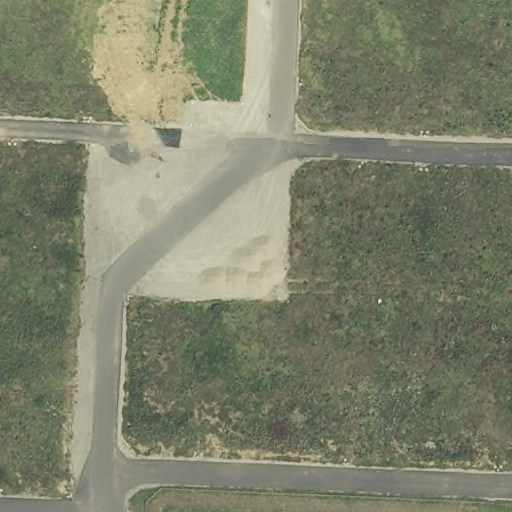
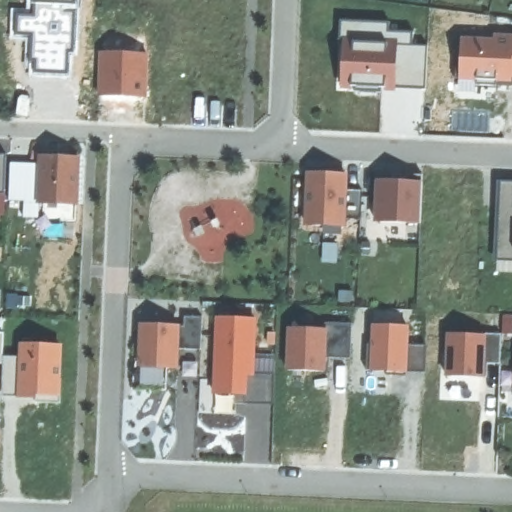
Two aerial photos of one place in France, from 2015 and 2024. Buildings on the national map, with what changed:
new [(77,8),(74,13),(73,51),(69,50),(68,72),(37,72),(37,61),(30,61),(31,35),(15,35),(16,13),(33,13),(34,0),(77,0),(77,8)]
new [(389,23),(390,31),(414,30),(416,47),(428,47),(428,90),(395,88),(338,86),(338,41),(339,20),(389,23)]
new [(510,84),(457,81),(459,37),(492,37),(491,33),(512,35),(512,79),(510,78),(510,84)]
new [(148,52),(148,97),(98,97),(99,52),(148,52)]
new [(6,154),(5,215),(0,215),(0,154),(6,154)]
new [(78,154),(78,202),(7,201),(8,162),(35,162),(36,154),(78,154)]
unchanged [(344,218),(343,226),(307,224),(309,172),(346,173),(345,188),(362,189),(361,219),(344,218)]
new [(389,180),(392,174),(422,175),(421,182),(420,223),(374,221),(375,180),(389,180)]
new [(500,181),(512,182),(512,261),(496,259),(500,181)]
new [(253,316),(251,373),(270,373),(271,402),(240,399),(240,391),(209,391),(212,314),(253,316)]
new [(183,325),(184,315),(203,316),(201,349),(178,348),(177,368),(140,367),(141,323),(183,325)]
new [(324,326),(324,321),(349,320),(347,355),(324,354),(323,368),(283,368),(284,324),(324,326)]
new [(409,327),(410,348),(425,348),(425,373),(409,374),(369,374),(370,325),(409,327)]
new [(500,331),(499,361),(484,361),(483,374),(441,373),(443,330),(500,331)]
new [(4,332),(3,364),(0,364),(0,332),(4,332)]
new [(63,344),(59,399),(16,398),(1,398),(3,364),(3,356),(19,357),(18,343),(63,344)]

